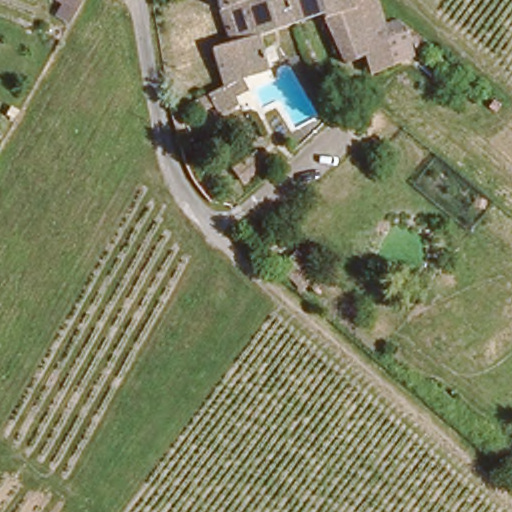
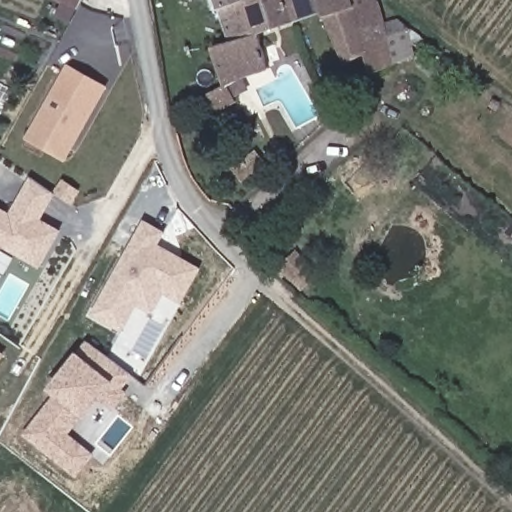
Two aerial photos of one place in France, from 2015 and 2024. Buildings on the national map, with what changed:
demolished [(73,5),(65,0),(76,0),(73,5)]
unchanged [(224,84),(214,44),(225,40),(228,39),(230,38),(221,7),(219,0),(343,0),(342,1),(364,53),(345,61),(312,12),(286,21),(250,33),(262,67),(245,73),(224,84)]
unchanged [(342,1),(343,0),(381,0),(388,18),(398,16),(410,25),(380,35),(391,62),(371,70),(364,53),(342,1)]
new [(44,150),(26,139),(67,66),(104,88),(72,144),(63,160),(44,150)]
unchanged [(211,111),(204,94),(224,84),(229,103),(211,111)]
unchanged [(250,165),(233,179),(223,167),(240,153),(250,165)]
new [(9,212),(28,178),(56,194),(42,219),(61,229),(39,270),(2,247),(0,250),(0,206),(9,212)]
new [(181,305),(164,295),(153,316),(137,306),(122,333),(92,316),(143,220),(166,233),(159,245),(202,269),(181,305)]
unchanged [(318,276),(328,288),(319,296),(308,285),(300,290),(285,272),(282,276),(275,268),(295,251),(318,276)]
new [(124,389),(129,393),(114,412),(102,402),(85,420),(84,419),(70,434),(95,454),(76,478),(22,436),(54,396),(48,391),(77,353),(87,342),(133,377),(124,389)]
new [(3,356),(0,360),(0,353),(3,356)]

